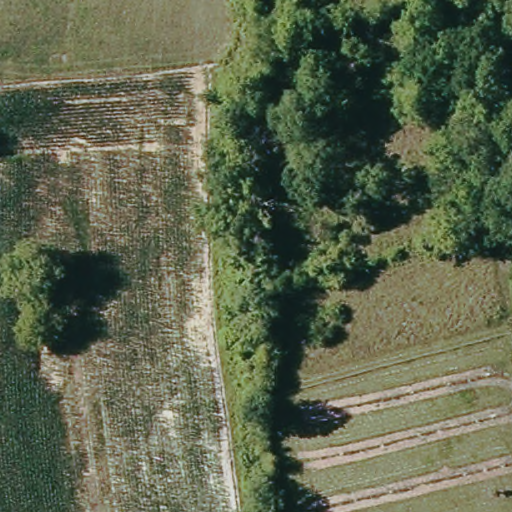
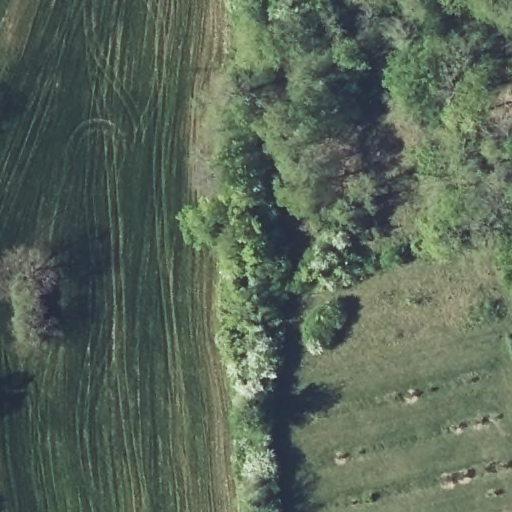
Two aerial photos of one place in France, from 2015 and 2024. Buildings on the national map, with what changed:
[]

